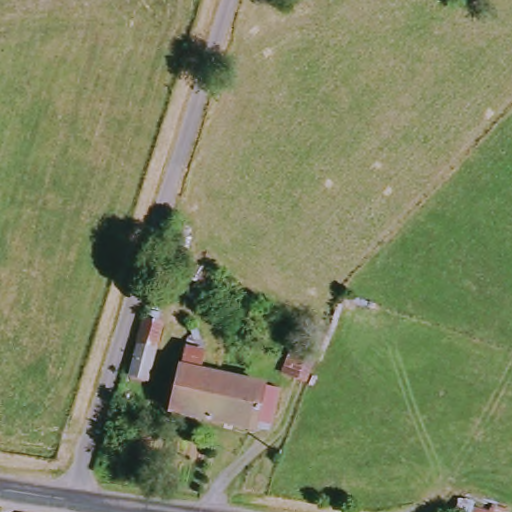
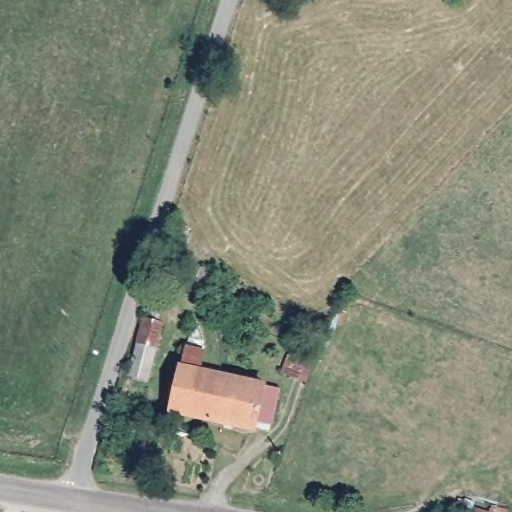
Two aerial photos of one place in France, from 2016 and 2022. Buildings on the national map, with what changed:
unchanged [(148,317),(163,321),(147,379),(130,374),(148,317)]
unchanged [(274,424),(258,421),(255,428),(172,410),(187,346),(205,350),(202,370),(282,387),(274,424)]
unchanged [(284,371),(293,347),(316,356),(307,381),(284,371)]
unchanged [(458,512),(462,497),(512,509),(512,512),(458,512)]

